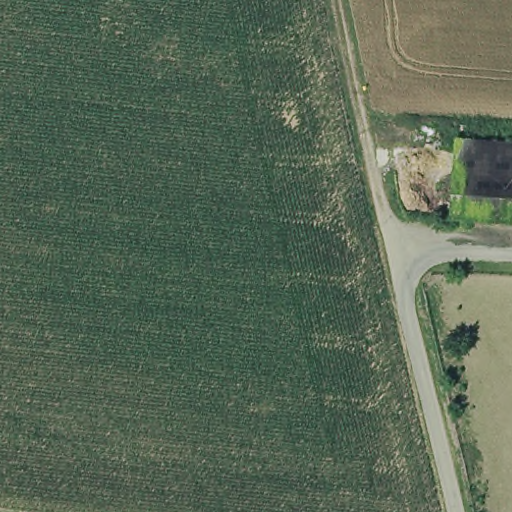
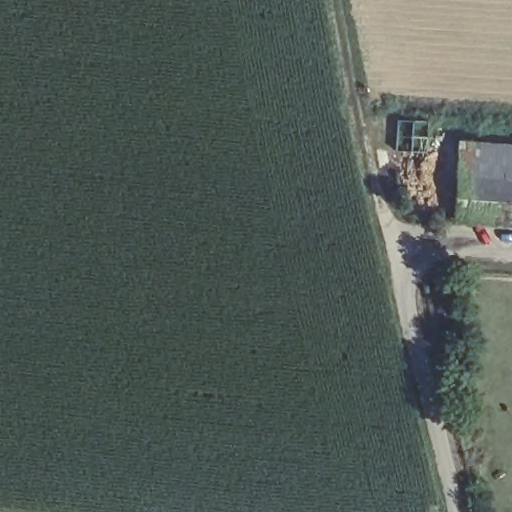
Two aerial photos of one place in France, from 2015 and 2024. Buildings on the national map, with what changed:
unchanged [(512,144),(512,223),(454,221),(460,140),(512,144)]

